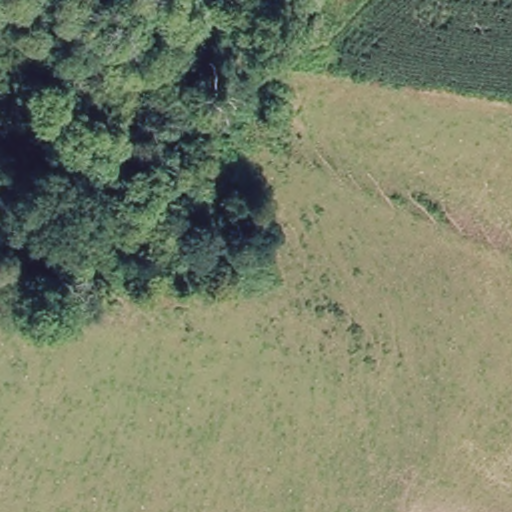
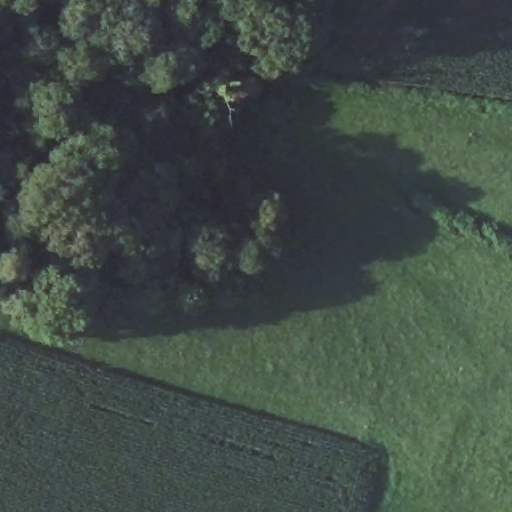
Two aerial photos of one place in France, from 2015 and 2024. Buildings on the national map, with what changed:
[]

